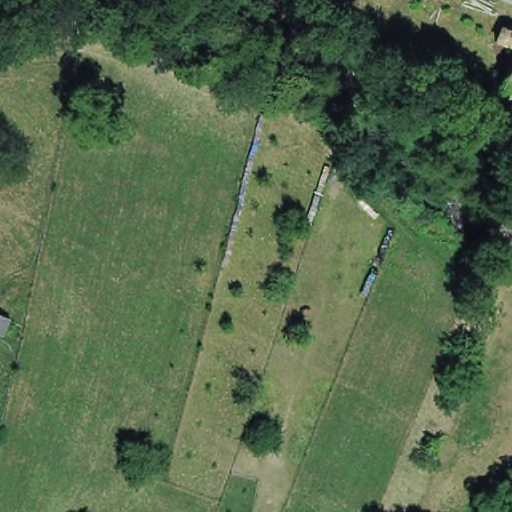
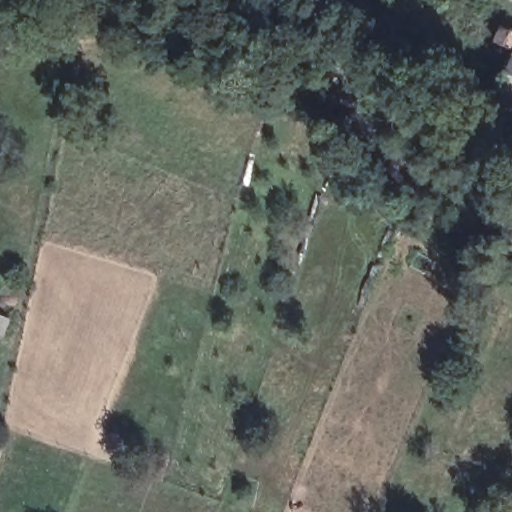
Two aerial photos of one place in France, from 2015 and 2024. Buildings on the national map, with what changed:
unchanged [(512,11),(512,28),(502,25),(503,21),(507,12),(508,9),(512,11)]
unchanged [(512,59),(512,102),(496,96),(512,59)]
unchanged [(512,115),(512,138),(504,135),(512,115)]
unchanged [(14,328),(8,342),(0,339),(0,322),(14,328)]

